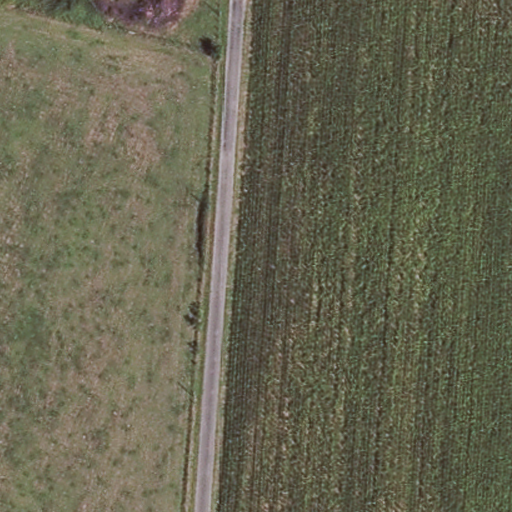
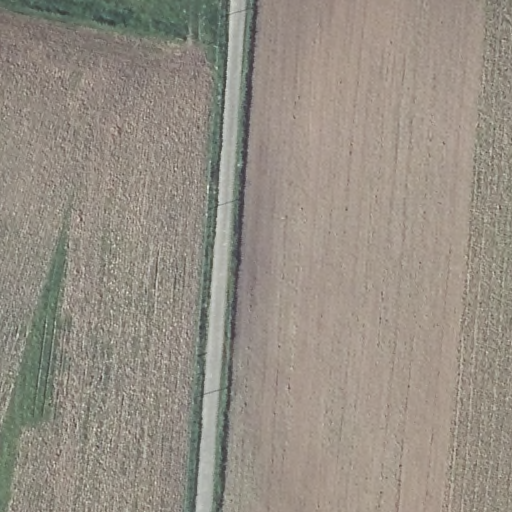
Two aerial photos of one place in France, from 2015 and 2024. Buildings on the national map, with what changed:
[]

